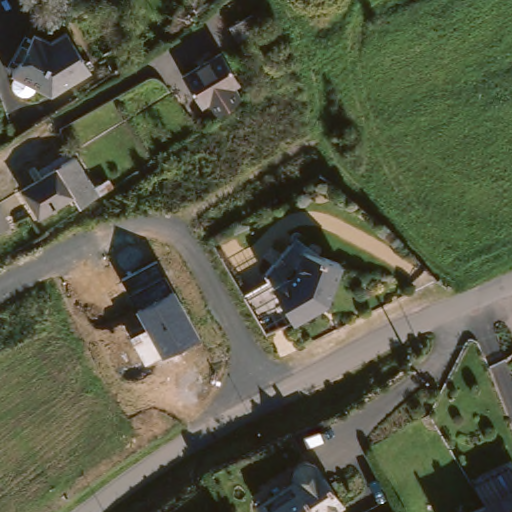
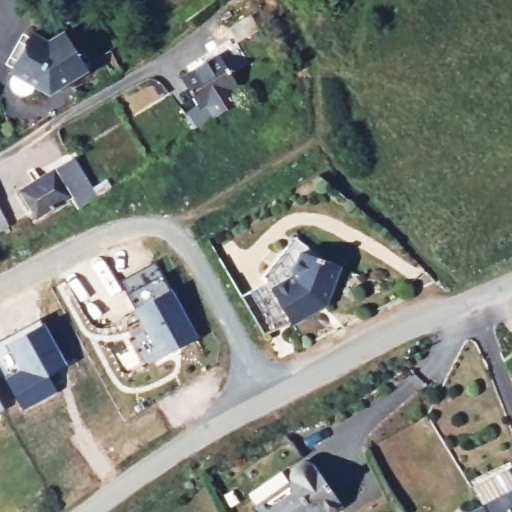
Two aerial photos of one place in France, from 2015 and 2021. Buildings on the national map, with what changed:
unchanged [(260,26),(237,42),(228,29),(250,13),(260,26)]
unchanged [(43,43),(59,33),(83,70),(45,95),(5,74),(26,34),(43,43)]
unchanged [(239,91),(205,112),(189,84),(222,64),(239,91)]
unchanged [(82,204),(72,192),(40,213),(25,188),(50,173),(49,171),(73,156),(91,181),(108,169),(115,180),(82,204)]
unchanged [(0,228),(0,211),(7,223),(0,228)]
unchanged [(281,339),(259,302),(287,287),(283,279),(303,244),(354,272),(339,309),(308,326),(281,339)]
unchanged [(156,262),(164,276),(172,290),(197,339),(161,359),(144,367),(127,338),(144,328),(134,309),(128,296),(121,280),(156,262)]
new [(48,375),(55,389),(22,407),(8,378),(0,364),(0,341),(6,337),(39,320),(65,365),(48,375)]
new [(0,404),(3,410),(0,412),(0,404)]
unchanged [(285,484),(264,499),(249,478),(292,446),(302,459),(279,476),(285,484)]
unchanged [(292,477),(298,468),(308,465),(314,468),(342,507),(336,512),(259,512),(257,509),(293,483),(292,477)]
unchanged [(468,496),(494,481),(510,472),(512,475),(512,512),(479,512),(468,496)]

